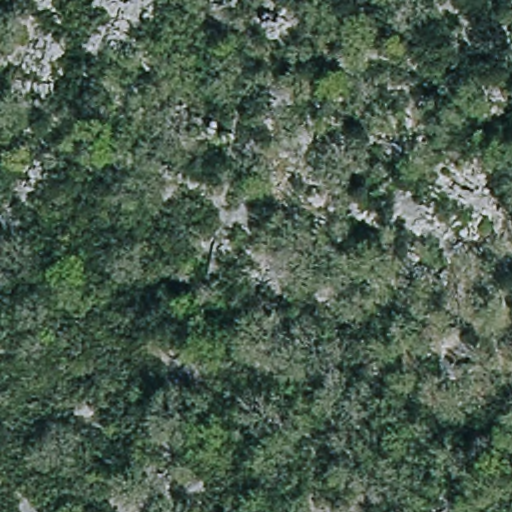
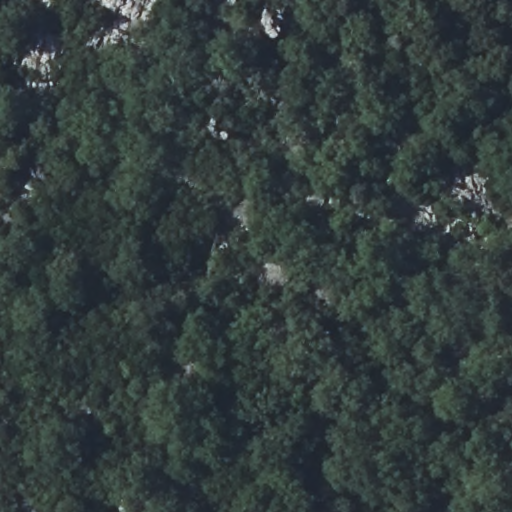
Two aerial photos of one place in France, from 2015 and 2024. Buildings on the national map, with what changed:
unchanged [(511,220),(512,218),(512,221),(511,220)]

